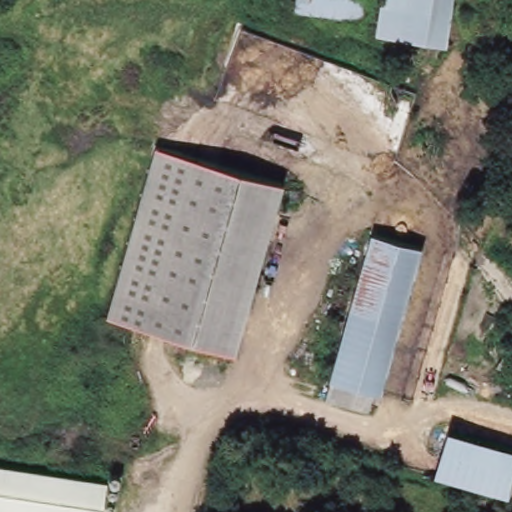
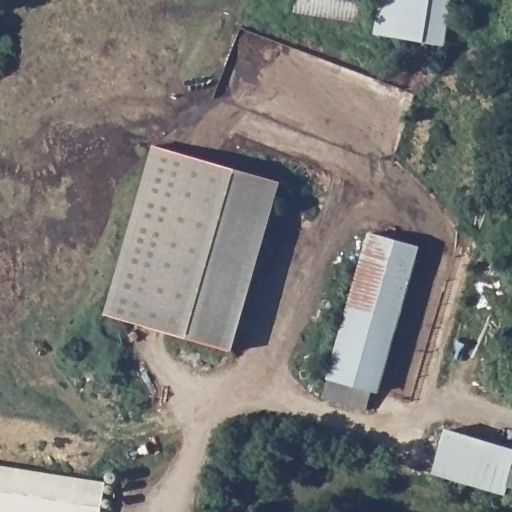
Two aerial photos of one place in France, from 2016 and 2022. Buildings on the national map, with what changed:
unchanged [(440,47),(371,36),(377,0),(448,0),(440,47)]
unchanged [(276,179),(256,267),(237,350),(149,330),(108,320),(127,237),(147,149),(276,179)]
unchanged [(417,247),(401,320),(384,393),(335,382),(352,306),(368,236),(417,247)]
unchanged [(512,485),(511,485),(509,493),(504,492),(435,475),(446,431),(512,449),(512,485)]
unchanged [(100,512),(0,512),(0,471),(104,485),(100,512)]

